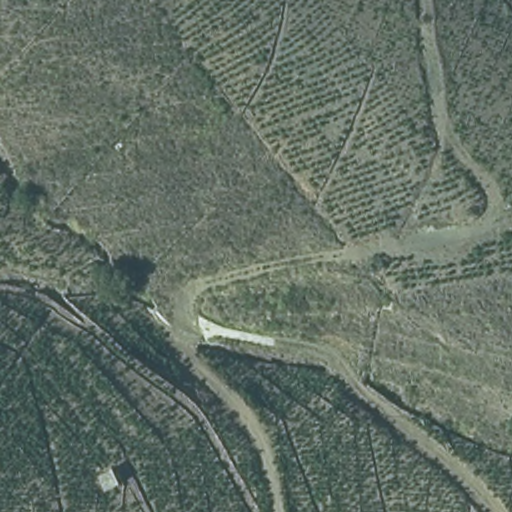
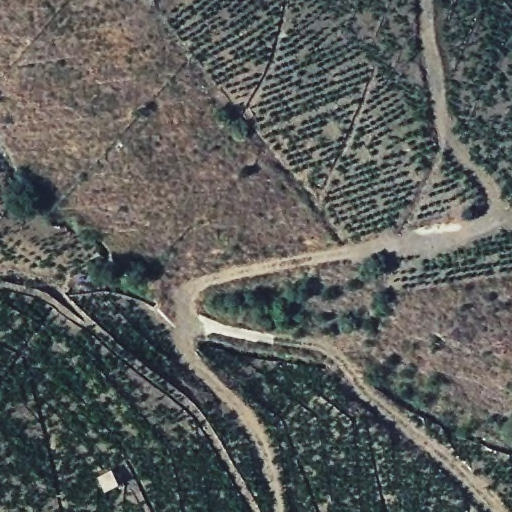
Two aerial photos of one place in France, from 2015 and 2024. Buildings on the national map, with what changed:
unchanged [(126,484),(109,496),(98,478),(115,470),(126,484)]

